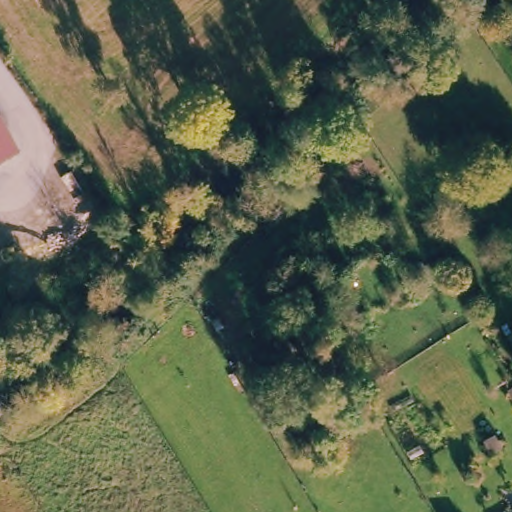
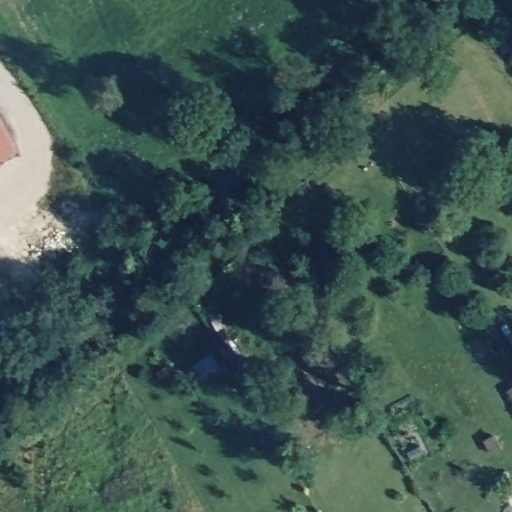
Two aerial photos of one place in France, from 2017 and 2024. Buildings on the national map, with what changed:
unchanged [(17,147),(0,157),(0,114),(17,147)]
unchanged [(504,348),(512,343),(512,361),(504,348)]

